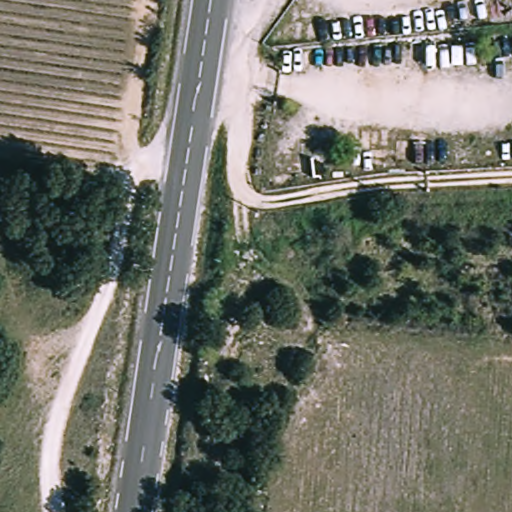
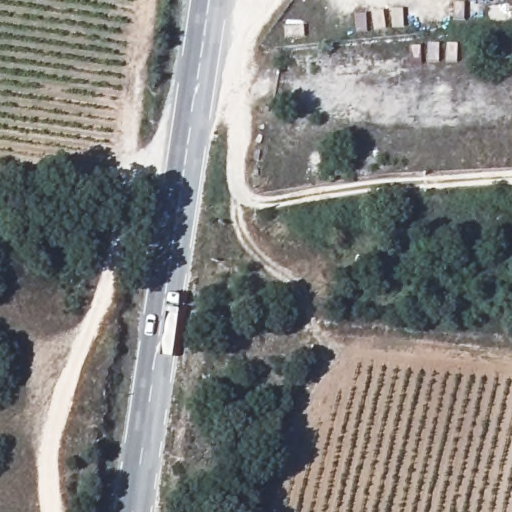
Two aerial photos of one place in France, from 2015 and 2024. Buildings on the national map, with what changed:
[]

